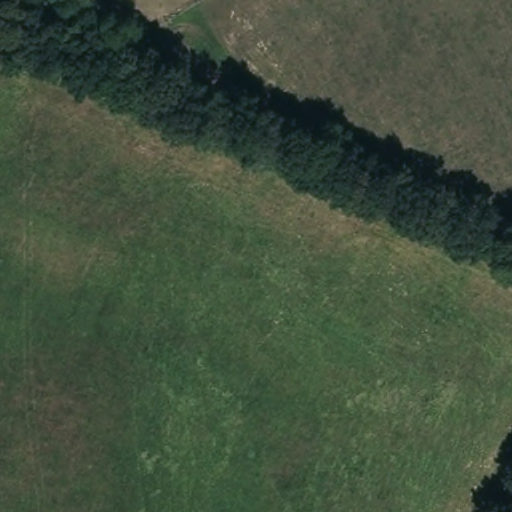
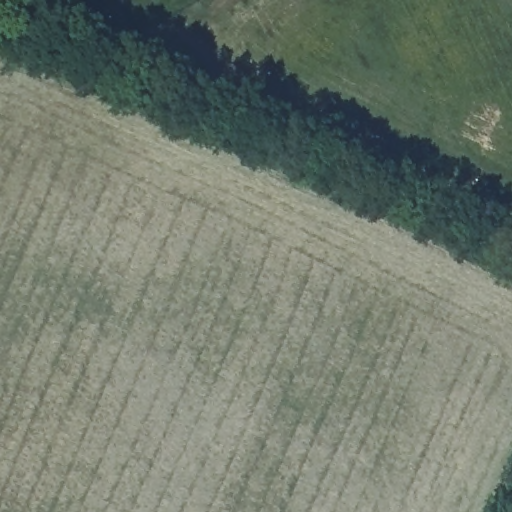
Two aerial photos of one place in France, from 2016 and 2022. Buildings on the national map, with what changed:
[]

